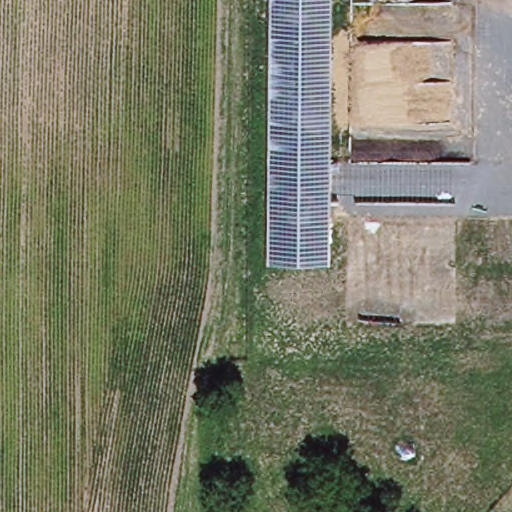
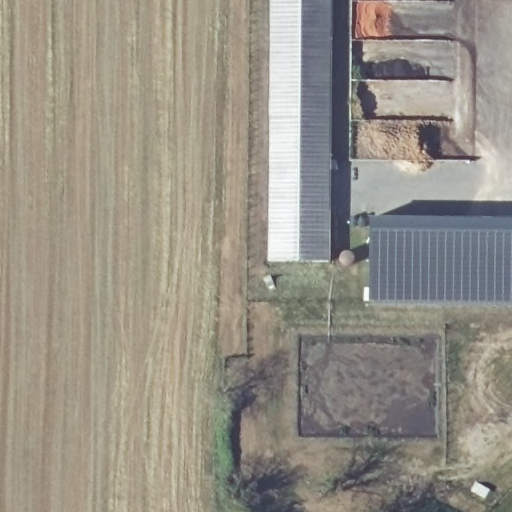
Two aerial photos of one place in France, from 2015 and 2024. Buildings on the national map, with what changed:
unchanged [(269,0),(331,0),(329,262),(266,261),(269,0)]
new [(363,224),(512,225),(512,310),(362,309),(363,224)]

